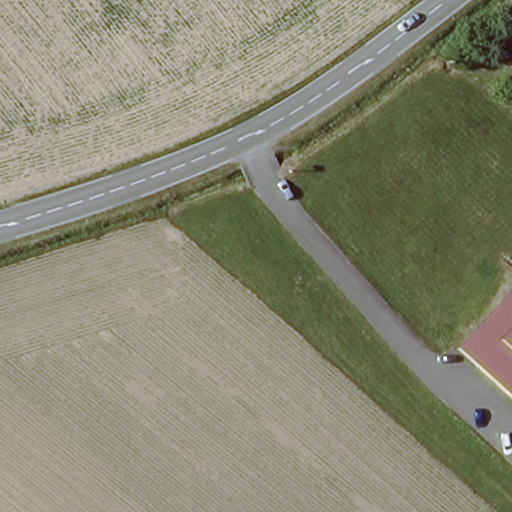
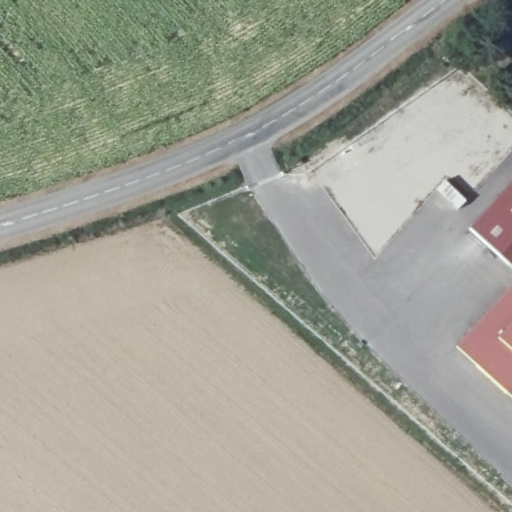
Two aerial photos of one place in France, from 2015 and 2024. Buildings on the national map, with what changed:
new [(512,181),(512,268),(470,230),(512,181)]
unchanged [(462,346),(512,291),(512,390),(462,346)]

